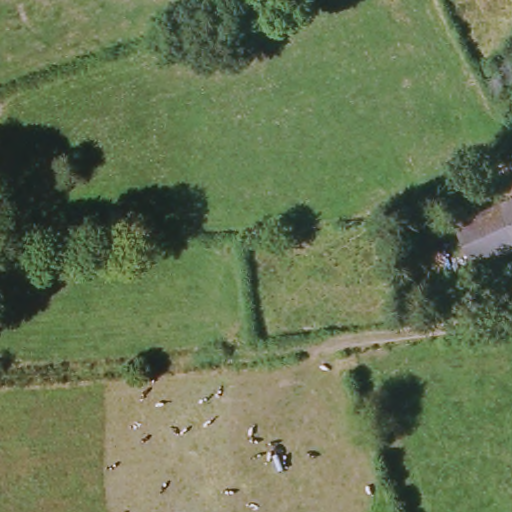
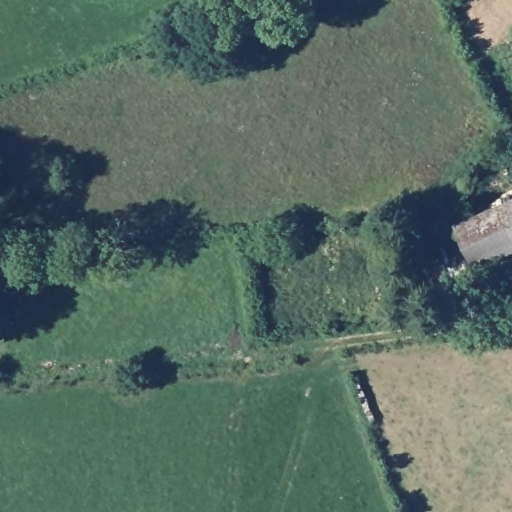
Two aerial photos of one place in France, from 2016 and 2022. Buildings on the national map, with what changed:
unchanged [(478,275),(457,233),(466,228),(512,206),(512,259),(478,275)]

